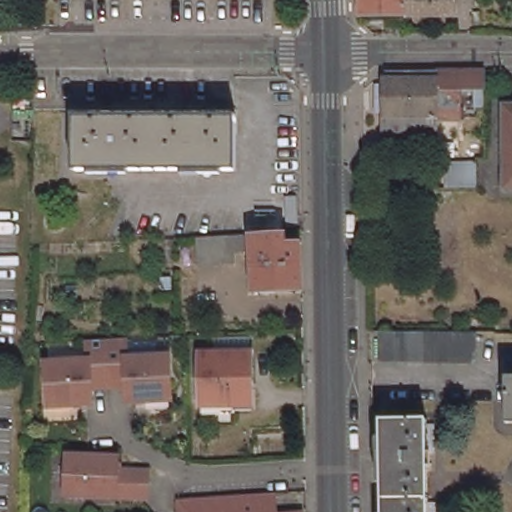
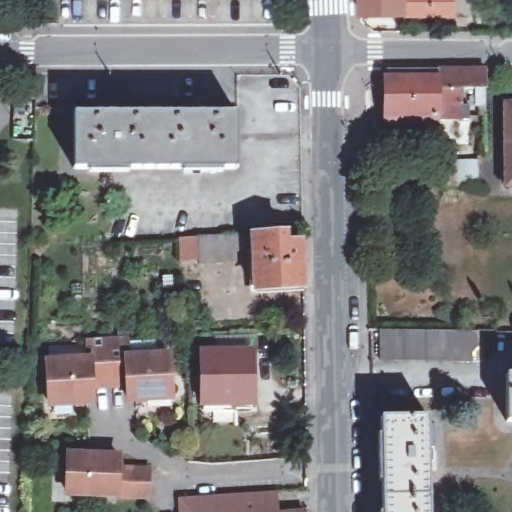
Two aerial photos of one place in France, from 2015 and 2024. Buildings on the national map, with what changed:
unchanged [(394,26),(394,10),(361,10),(361,0),(405,0),(405,9),(405,26),(394,26)]
unchanged [(453,0),(453,10),(405,9),(405,0),(453,0)]
unchanged [(399,78),(400,72),(480,73),(480,93),(454,93),(455,113),(459,113),(460,121),(455,121),(454,123),(434,123),(433,142),(381,143),(380,78),(399,78)]
unchanged [(12,119),(13,97),(34,98),(34,103),(33,139),(11,139),(12,124),(12,119)]
unchanged [(480,113),(470,113),(470,100),(480,100),(480,113)]
unchanged [(505,104),(512,104),(512,184),(505,184),(505,104)]
unchanged [(73,165),(74,111),(236,114),(235,168),(73,165)]
unchanged [(256,287),(253,247),(238,247),(238,260),(203,261),(201,236),(286,231),(286,241),(302,241),(304,285),(256,287)]
unchanged [(479,346),(473,346),(473,362),(380,360),(380,330),(470,331),(479,331),(479,346)]
unchanged [(119,341),(120,361),(163,359),(165,402),(121,405),(120,389),(104,390),(101,342),(119,341)]
unchanged [(101,342),(104,390),(88,391),(88,407),(45,409),(43,366),(84,363),(83,343),(101,342)]
unchanged [(214,409),(203,410),(203,352),(209,352),(208,345),(216,345),(216,352),(253,352),(253,401),(234,402),(234,408),(214,409)]
unchanged [(508,375),(512,375),(512,420),(508,421),(508,375)]
unchanged [(383,417),(429,417),(430,512),(384,512),(383,417)]
unchanged [(118,455),(118,468),(148,467),(149,493),(69,495),(68,456),(118,455)]
unchanged [(180,500),(275,494),(277,512),(181,512),(180,500)]
unchanged [(294,510),(301,510),(302,510),(302,512),(294,512),(294,510)]

